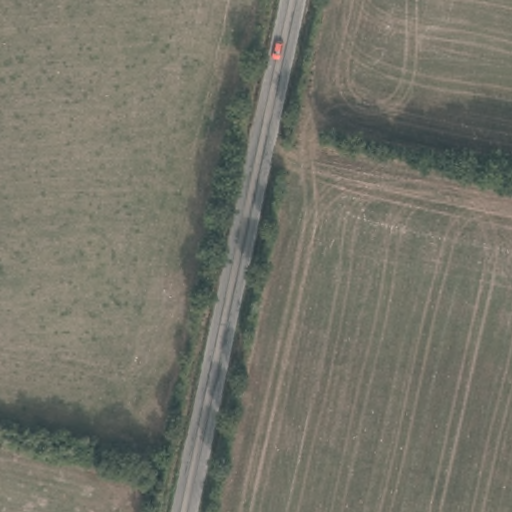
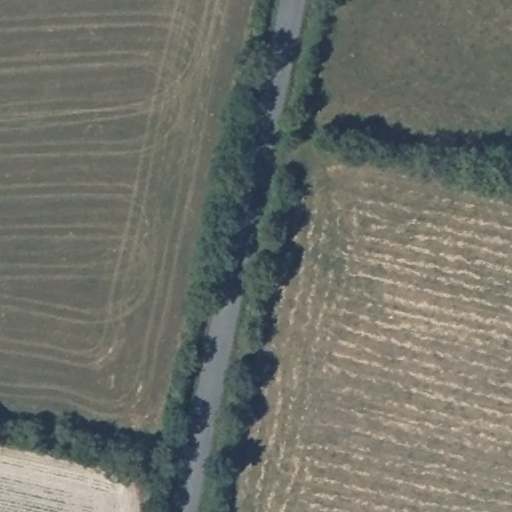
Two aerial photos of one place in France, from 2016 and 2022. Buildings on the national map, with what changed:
[]

